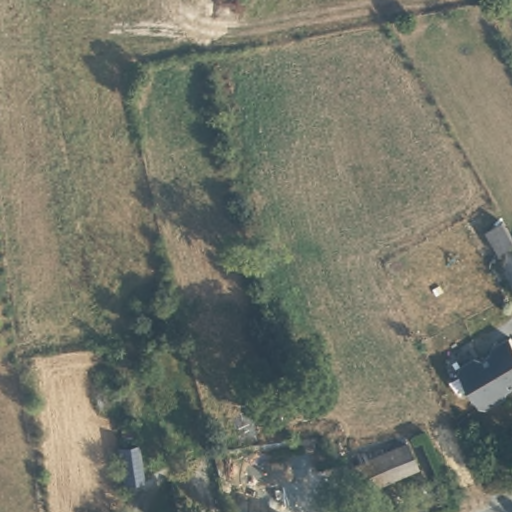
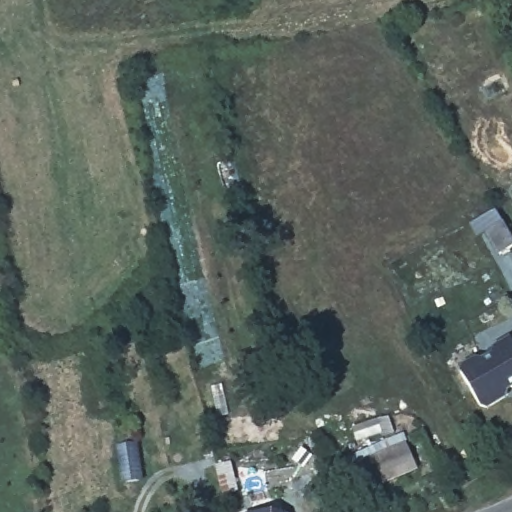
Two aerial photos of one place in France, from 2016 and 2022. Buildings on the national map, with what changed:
unchanged [(486,228),(506,217),(512,229),(512,247),(500,253),(486,228)]
unchanged [(467,351),(475,352),(486,345),(487,339),(503,330),(512,344),(512,376),(500,382),(500,389),(482,399),(475,398),(455,363),(456,357),(467,351)]
unchanged [(116,421),(135,416),(151,478),(130,481),(116,421)]
unchanged [(413,471),(360,493),(348,463),(402,441),(413,471)]

